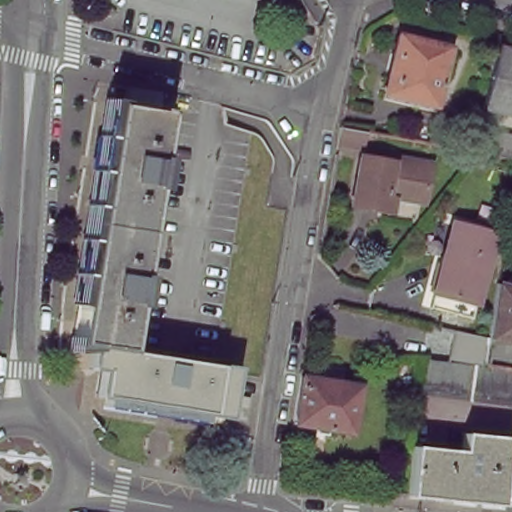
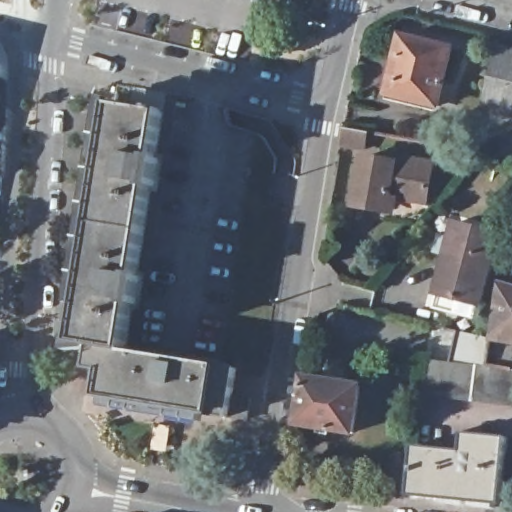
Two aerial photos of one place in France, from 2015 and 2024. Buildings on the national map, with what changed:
unchanged [(438,106),(394,94),(398,82),(389,79),(400,34),(452,47),(438,106)]
unchanged [(502,46),(512,49),(512,115),(486,109),(502,46)]
unchanged [(225,412),(225,415),(176,407),(95,396),(100,368),(87,367),(91,343),(73,340),(115,84),(164,92),(154,158),(159,159),(154,187),(148,187),(135,274),(140,275),(135,306),(130,305),(123,347),(235,366),(231,392),(249,395),(248,402),(245,416),(225,412)]
unchanged [(369,131),(365,147),(340,142),(343,126),(369,131)]
unchanged [(498,154),(502,134),(512,136),(512,156),(498,154)]
unchanged [(393,156),(432,162),(427,192),(420,192),(419,202),(387,196),(384,212),(353,206),(363,156),(392,162),(393,156)]
unchanged [(434,304),(438,290),(456,221),(496,232),(478,300),(475,315),(434,304)]
unchanged [(495,286),(512,291),(512,346),(486,341),(495,286)]
unchanged [(482,369),(486,341),(512,346),(512,374),(482,369)]
unchanged [(419,392),(423,362),(477,368),(482,369),(512,374),(512,405),(419,392)]
unchanged [(361,384),(353,431),(296,421),(304,375),(361,384)]
unchanged [(414,443),(461,450),(464,431),(508,436),(501,505),(406,495),(414,443)]

